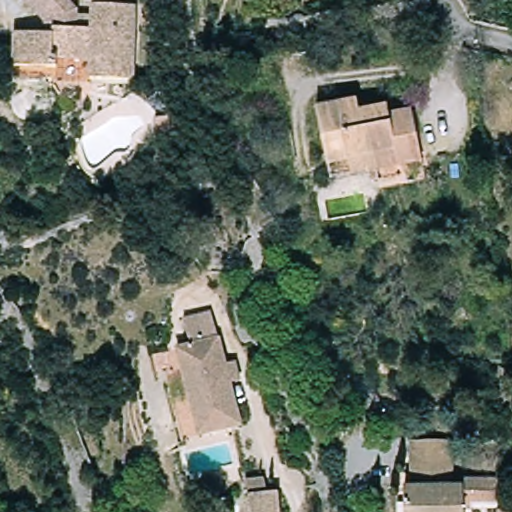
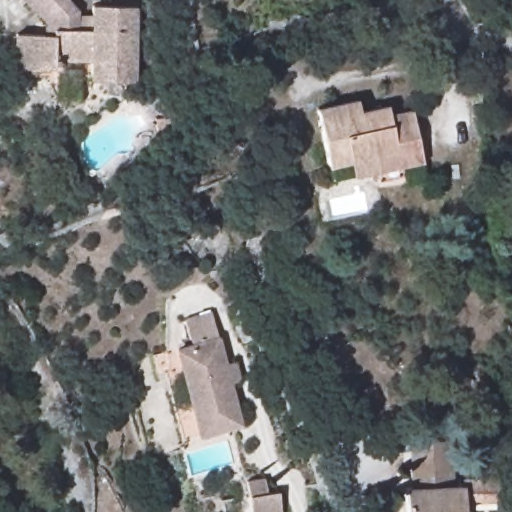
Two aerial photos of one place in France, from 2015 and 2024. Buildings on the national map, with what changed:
unchanged [(86,60),(52,60),(52,68),(9,68),(9,34),(40,34),(40,22),(18,0),(64,0),(75,10),(74,29),(86,29),(86,6),(133,6),(133,79),(86,79),(86,60)]
unchanged [(325,169),(313,108),(352,100),(355,113),(385,107),(387,116),(408,112),(419,165),(370,175),(328,184),(325,169)]
unchanged [(188,348),(180,323),(208,315),(214,341),(217,340),(224,367),(233,366),(238,384),(229,388),(240,427),(239,431),(197,442),(195,440),(171,352),(188,348)]
unchanged [(408,490),(413,489),(412,444),(454,444),(454,480),(455,487),(465,488),(465,508),(465,512),(408,512),(408,490)]
unchanged [(263,479),(265,495),(277,494),(278,512),(248,512),(245,481),(263,479)]
unchanged [(499,480),(499,508),(465,508),(465,488),(455,487),(454,480),(499,480)]

